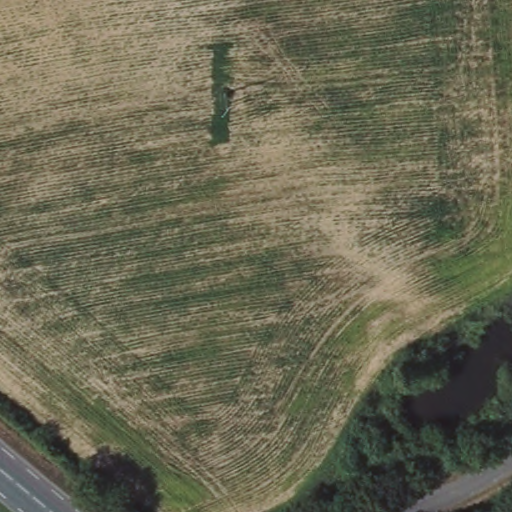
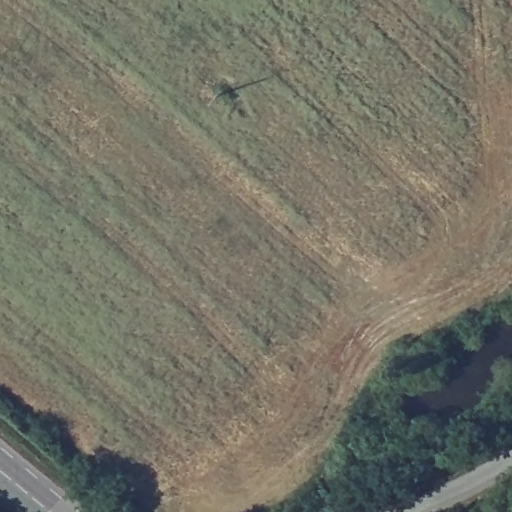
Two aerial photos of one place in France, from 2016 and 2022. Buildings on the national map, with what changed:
[]

